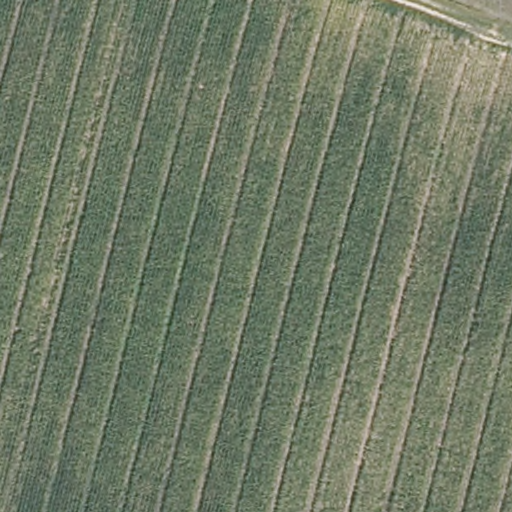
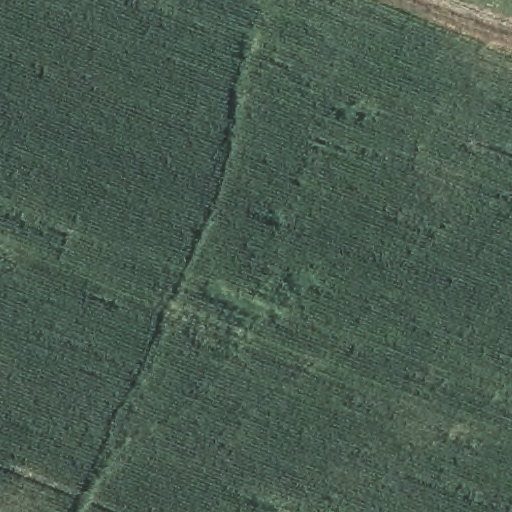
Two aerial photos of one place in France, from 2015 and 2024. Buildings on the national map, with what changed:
[]

